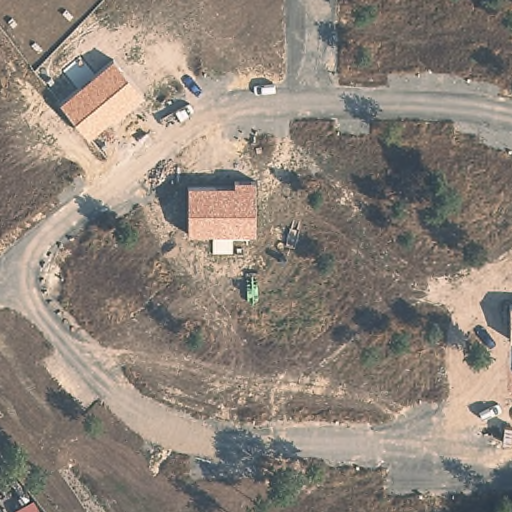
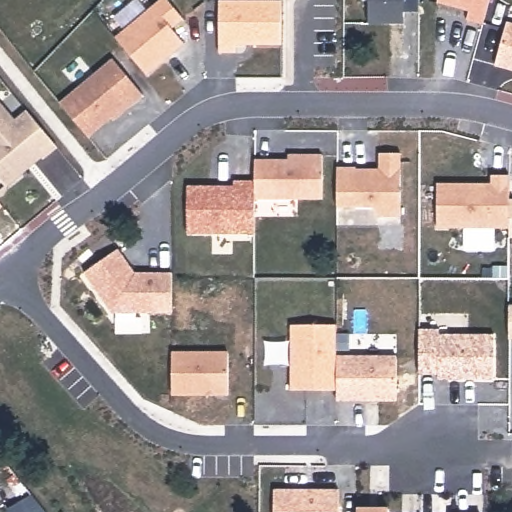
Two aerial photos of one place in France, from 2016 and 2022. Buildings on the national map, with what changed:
new [(168,0),(184,19),(172,30),(183,44),(146,75),(114,38),(159,0),(168,0)]
unchanged [(259,0),(279,0),(279,46),(235,45),(235,54),(217,54),(218,1),(259,0)]
unchanged [(368,0),(362,0),(420,0),(419,10),(403,11),(403,24),(366,24),(368,0)]
new [(436,3),(437,0),(490,0),(483,25),(466,21),(468,11),(436,3)]
new [(506,22),(512,23),(512,71),(494,66),(506,22)]
unchanged [(110,60),(142,96),(112,123),(109,119),(87,138),(58,103),(110,60)]
unchanged [(24,111),(57,150),(44,162),(40,158),(5,188),(0,181),(0,105),(14,121),(24,111)]
new [(336,167),(359,166),(358,169),(379,169),(378,152),(400,151),(399,218),(380,219),(374,208),(336,208),(336,167)]
unchanged [(322,200),(254,200),(255,235),(187,234),(188,185),(233,186),(233,180),(253,181),(254,159),(286,159),(286,154),(321,154),(322,200)]
new [(436,184),(490,183),(490,174),(509,175),(509,199),(508,228),(495,229),(496,252),(464,253),(464,229),(436,229),(436,184)]
unchanged [(508,239),(508,228),(509,199),(512,199),(512,239),(508,239)]
unchanged [(0,208),(0,205),(1,207),(0,208)]
new [(118,248),(135,272),(172,273),(173,313),(113,314),(84,273),(118,248)]
unchanged [(508,340),(508,304),(512,305),(512,340),(508,340)]
new [(338,324),(338,355),(397,356),(397,402),(336,402),(335,390),(290,390),(290,325),(338,324)]
new [(419,329),(439,329),(440,334),(494,334),(495,380),(437,382),(436,376),(419,376),(419,329)]
new [(171,351),(228,351),(228,397),(171,397),(171,351)]
unchanged [(337,489),(337,512),(272,512),(272,489),(337,489)]
new [(357,506),(388,507),(388,512),(357,512),(357,506)]

